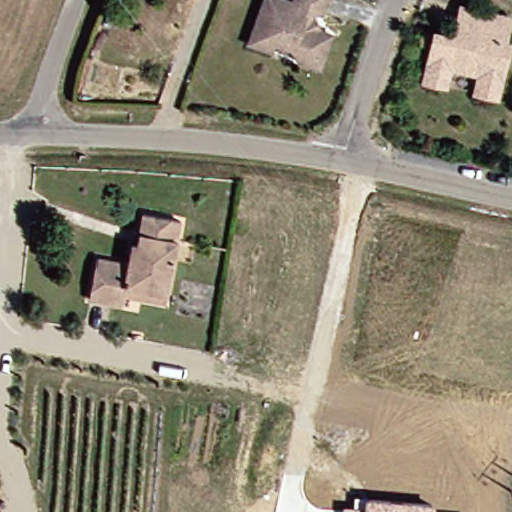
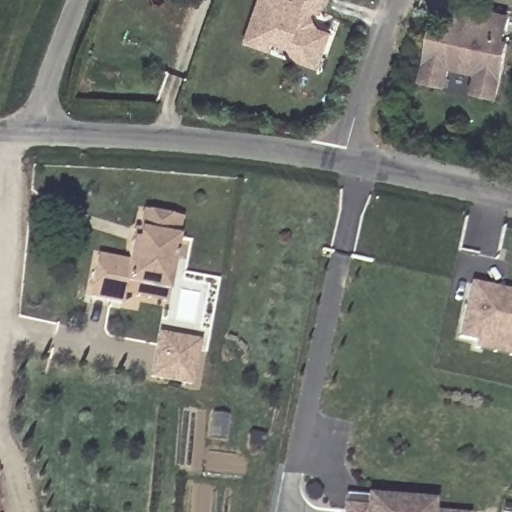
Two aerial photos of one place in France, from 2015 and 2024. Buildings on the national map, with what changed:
unchanged [(281,46),(264,40),(261,47),(240,40),(252,0),(314,0),(311,7),(302,6),(302,12),(307,26),(322,31),(312,57),(310,66),(289,57),(281,46)]
unchanged [(448,31),(456,2),(507,16),(499,42),(506,43),(491,97),(466,90),(471,72),(444,65),(439,84),(413,77),(427,26),(448,31)]
unchanged [(117,289),(114,300),(81,292),(91,252),(122,257),(126,235),(133,236),(140,209),(178,218),(164,288),(161,300),(117,289)]
new [(512,292),(512,358),(473,348),(475,343),(457,337),(470,283),(512,292)]
new [(192,387),(151,379),(156,333),(199,341),(192,387)]
new [(353,506),(354,495),(365,497),(434,502),(433,512),(341,512),(342,505),(353,506)]

